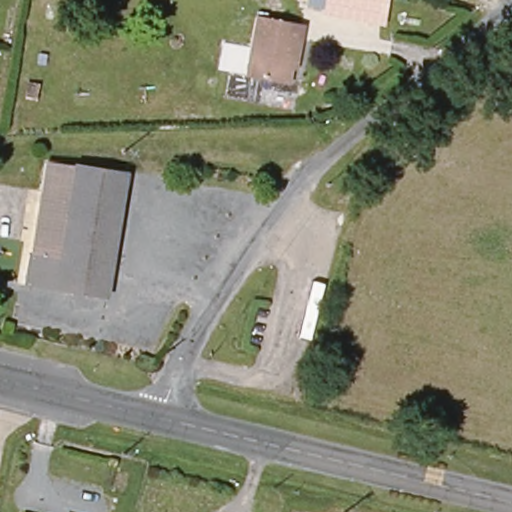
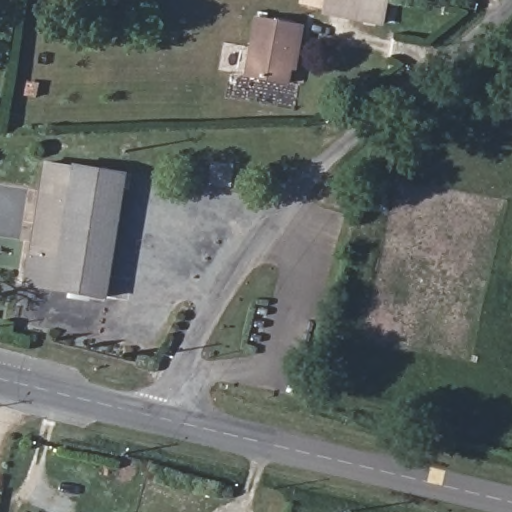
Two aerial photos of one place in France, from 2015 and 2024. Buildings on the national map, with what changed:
unchanged [(321,14),(322,8),(297,3),(298,0),(388,0),(383,25),(321,14)]
unchanged [(300,37),(292,85),(251,77),(262,15),(311,24),(308,39),(300,37)]
unchanged [(24,288),(27,256),(30,256),(41,165),(121,172),(107,296),(24,288)]

